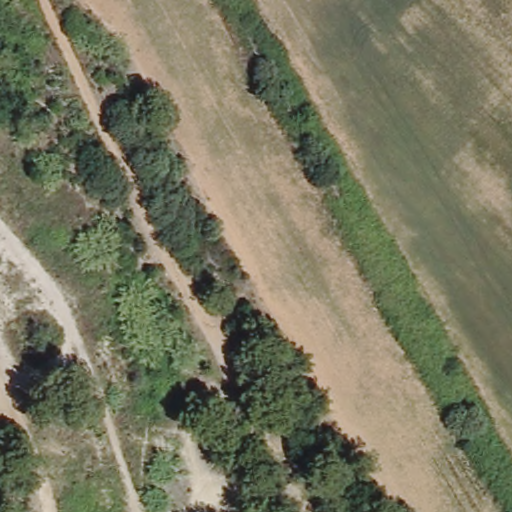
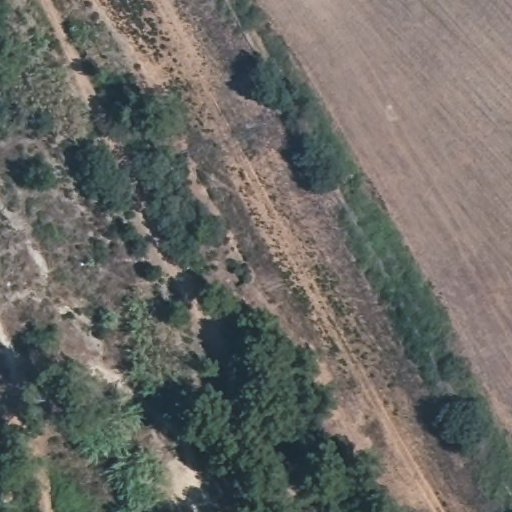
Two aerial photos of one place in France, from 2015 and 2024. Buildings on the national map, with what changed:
[]

